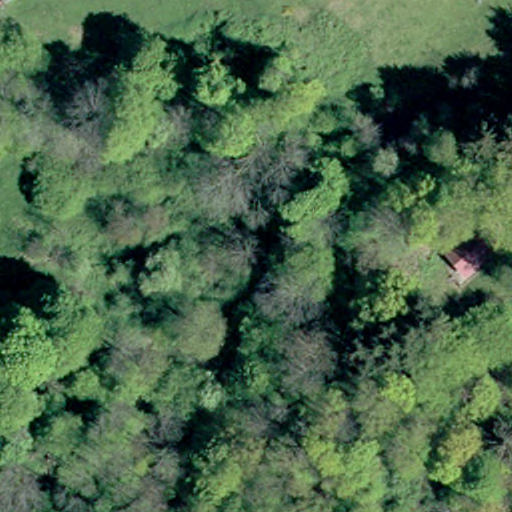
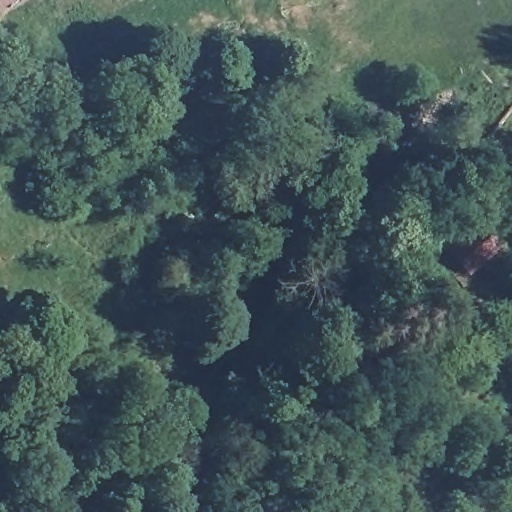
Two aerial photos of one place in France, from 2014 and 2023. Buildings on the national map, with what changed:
unchanged [(490,250),(467,272),(455,260),(480,238),(490,250)]

